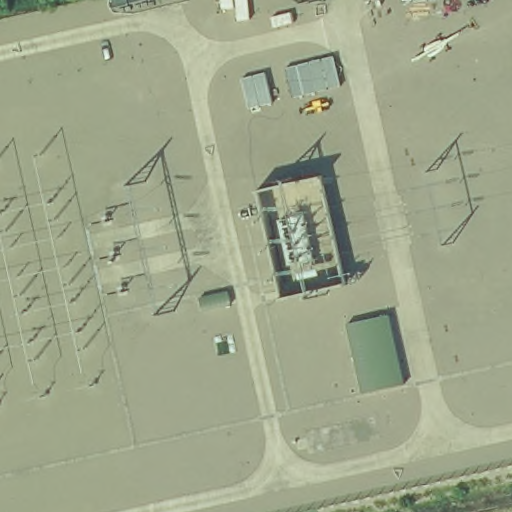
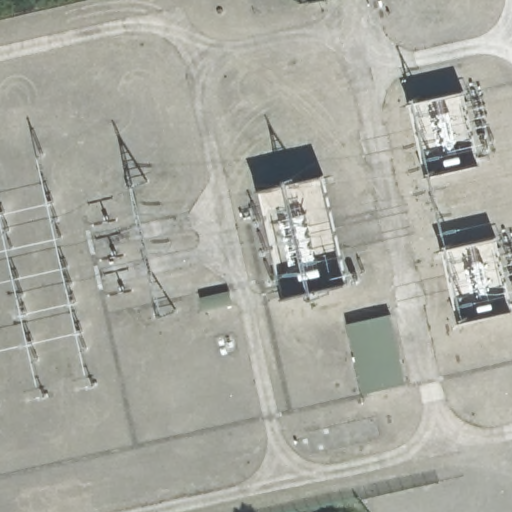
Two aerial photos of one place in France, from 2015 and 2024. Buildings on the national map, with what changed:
unchanged [(349,285),(285,300),(260,189),(322,175),(349,285)]
unchanged [(409,384),(365,394),(347,323),(392,314),(409,384)]

